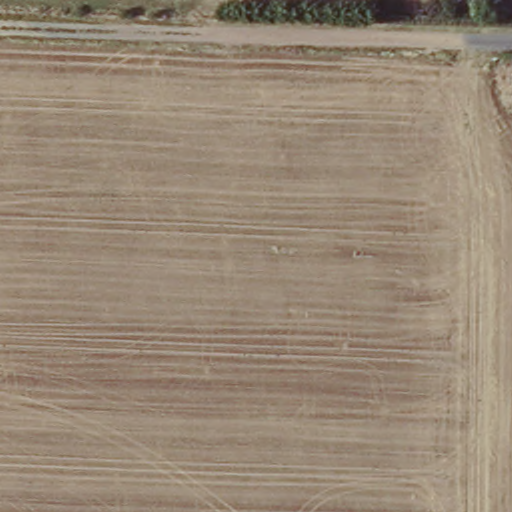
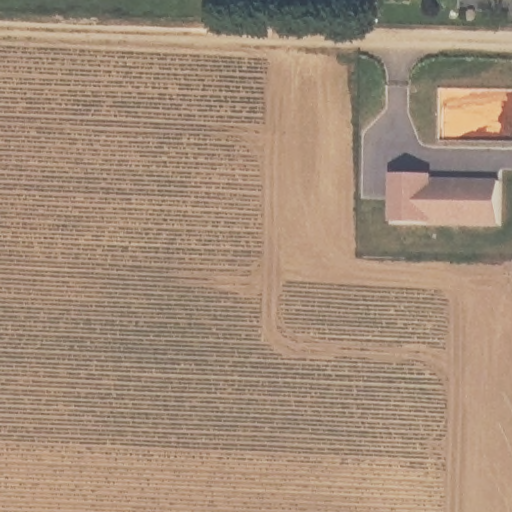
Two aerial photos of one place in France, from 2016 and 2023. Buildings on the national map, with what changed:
new [(433,180),(433,185),(497,183),(497,227),(392,227),(394,178),(433,180)]

